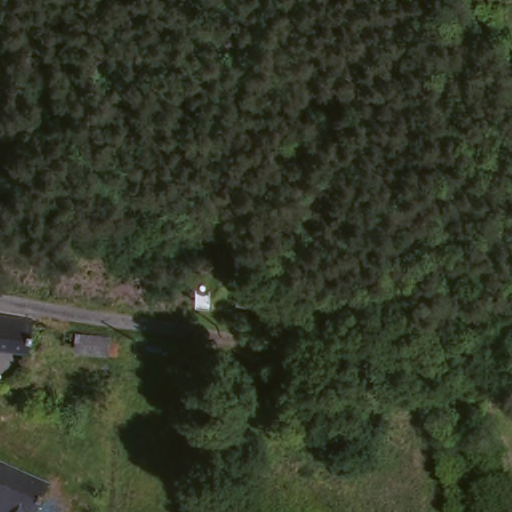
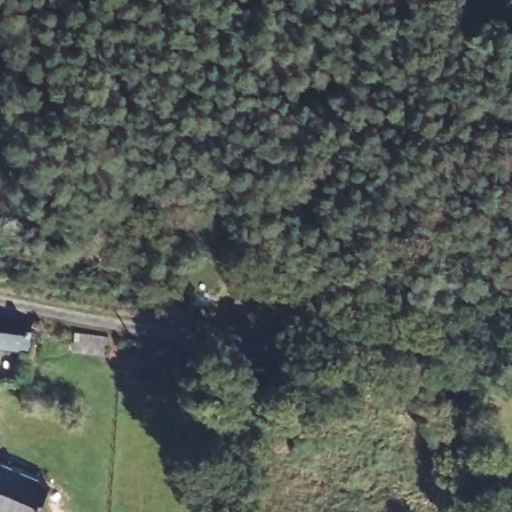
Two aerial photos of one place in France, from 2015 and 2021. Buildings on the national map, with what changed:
unchanged [(26,324),(21,354),(19,354),(0,351),(0,319),(26,324)]
unchanged [(86,339),(118,345),(116,357),(84,353),(86,339)]
unchanged [(16,475),(43,485),(34,512),(0,512),(0,468),(16,475)]

